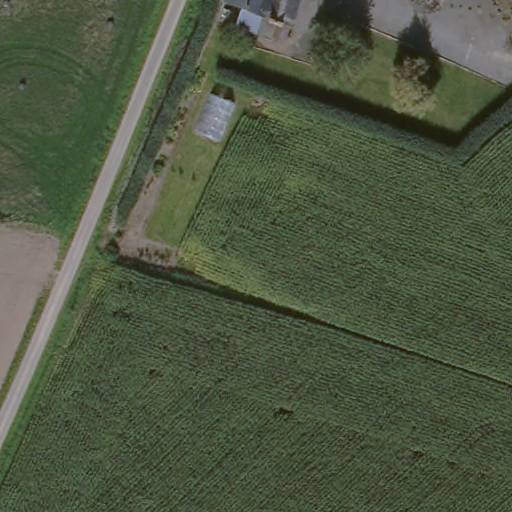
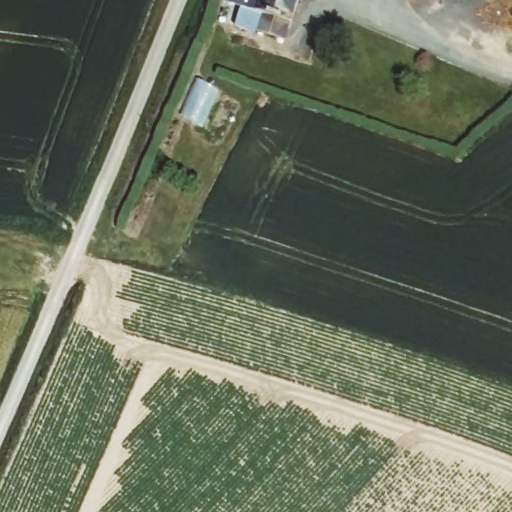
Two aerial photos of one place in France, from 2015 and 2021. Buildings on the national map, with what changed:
unchanged [(289,45),(259,36),(268,10),(234,0),(303,0),(289,45)]

